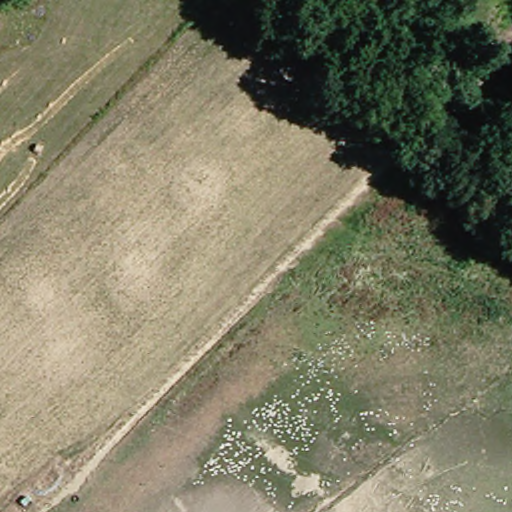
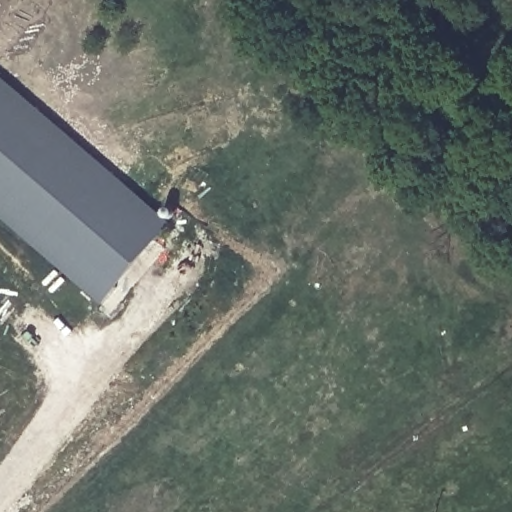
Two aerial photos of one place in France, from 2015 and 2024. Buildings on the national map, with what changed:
new [(0,220),(0,83),(169,224),(155,240),(116,287),(102,304),(0,220)]

